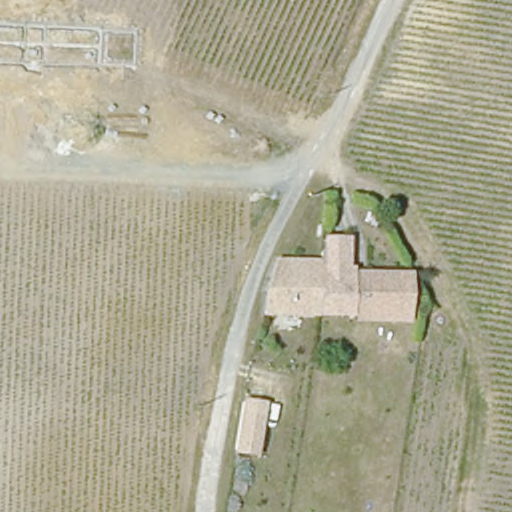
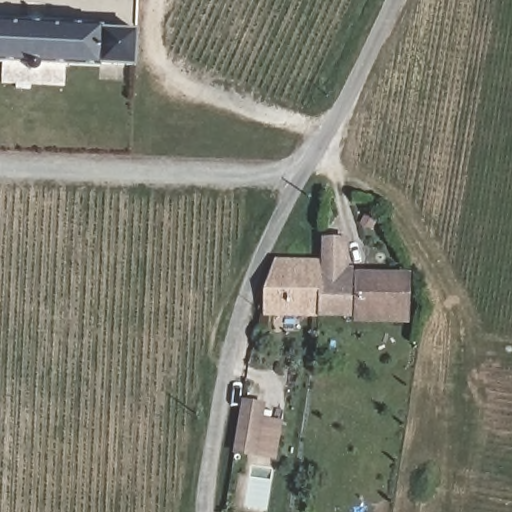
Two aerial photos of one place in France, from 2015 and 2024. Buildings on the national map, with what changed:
new [(139,30),(136,67),(99,66),(0,61),(0,23),(101,28),(139,30)]
unchanged [(367,322),(368,307),(370,290),(365,290),(362,319),(328,317),(333,258),(336,258),(337,242),(358,243),(356,272),(366,273),(365,277),(421,282),(418,311),(417,326),(367,322)]
unchanged [(333,258),(328,317),(271,313),(272,276),(282,255),(333,258)]
unchanged [(257,457),(233,454),(242,398),(268,403),(257,457)]

